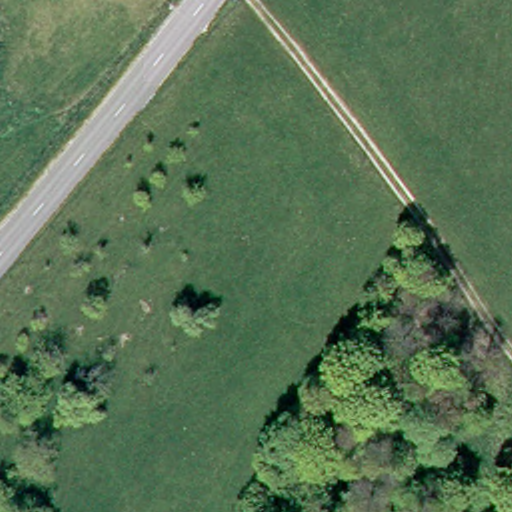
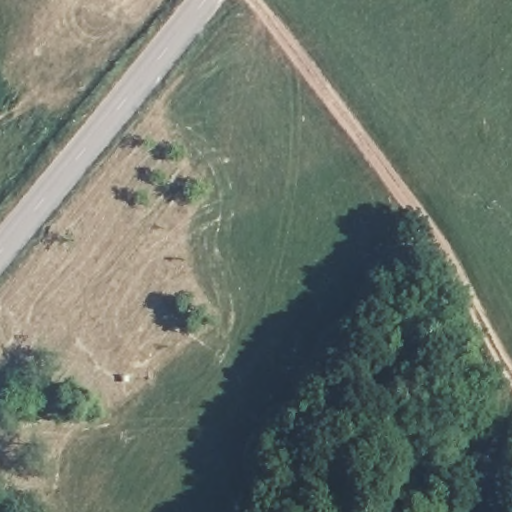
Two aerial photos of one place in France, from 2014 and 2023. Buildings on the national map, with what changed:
unchanged [(426,424),(423,431),(415,427),(419,420),(426,424)]

